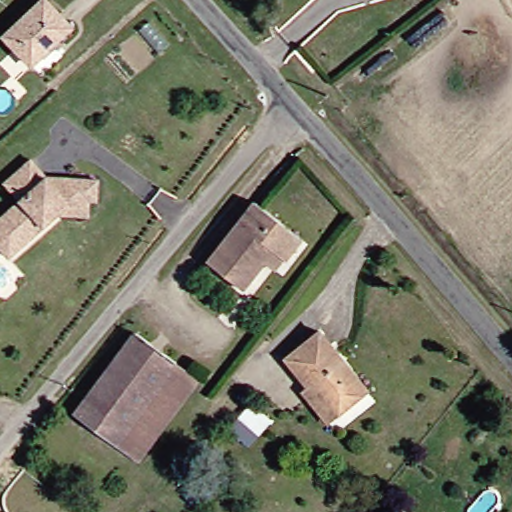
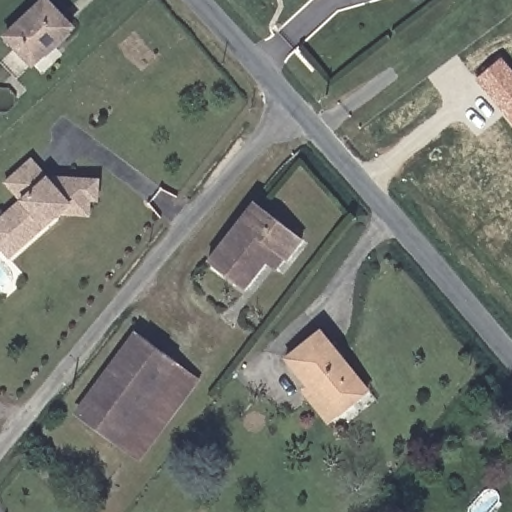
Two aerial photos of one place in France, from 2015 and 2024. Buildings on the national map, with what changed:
unchanged [(49,6),(76,33),(33,67),(11,39),(49,6)]
new [(475,79),(501,57),(512,70),(512,125),(475,79)]
unchanged [(0,226),(2,224),(25,202),(10,184),(36,158),(64,185),(76,175),(106,176),(106,196),(96,198),(96,212),(62,213),(25,248),(15,259),(0,245),(0,226)]
unchanged [(295,260),(282,250),(248,289),(212,261),(261,200),(311,239),(295,260)]
unchanged [(88,412),(147,335),(187,365),(128,442),(88,412)]
unchanged [(311,395),(318,388),(298,367),(330,339),(376,387),(353,411),(338,425),(311,395)]
unchanged [(128,442),(187,365),(206,381),(144,456),(128,442)]

